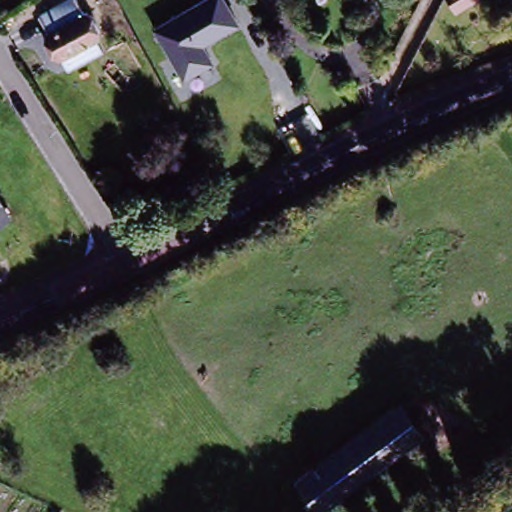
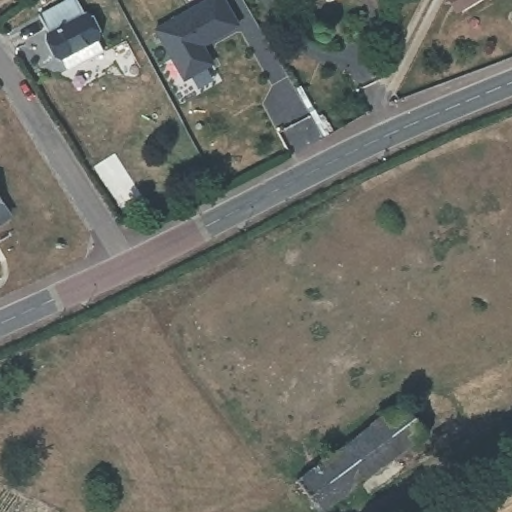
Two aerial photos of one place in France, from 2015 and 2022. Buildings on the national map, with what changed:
unchanged [(205,0),(226,0),(240,25),(204,46),(215,62),(183,79),(156,28),(205,0)]
unchanged [(74,68),(69,60),(59,66),(45,44),(53,40),(41,22),(70,4),(80,20),(89,16),(102,39),(98,42),(103,50),(74,68)]
unchanged [(0,220),(0,199),(9,215),(0,220)]
unchanged [(315,503),(295,473),(398,404),(418,435),(358,475),(315,503)]
unchanged [(430,452),(370,493),(358,475),(418,435),(430,452)]

